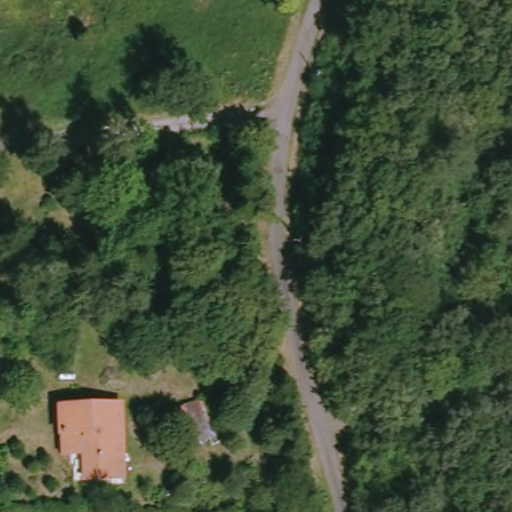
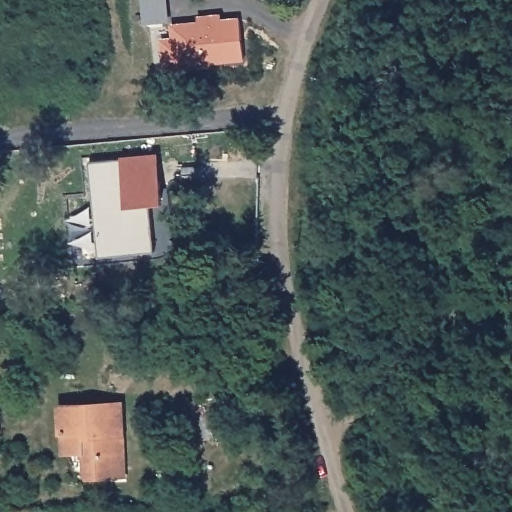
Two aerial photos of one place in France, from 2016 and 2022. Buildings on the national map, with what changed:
new [(198,16),(221,15),(221,20),(239,19),(243,62),(208,65),(208,68),(166,70),(162,31),(167,30),(166,24),(198,21),(198,16)]
new [(98,255),(90,162),(123,160),(123,156),(159,154),(163,202),(148,205),(153,252),(98,255)]
demolished [(136,241),(118,241),(116,205),(134,204),(136,241)]
unchanged [(76,482),(78,455),(55,455),(51,402),(119,400),(123,482),(76,482)]

